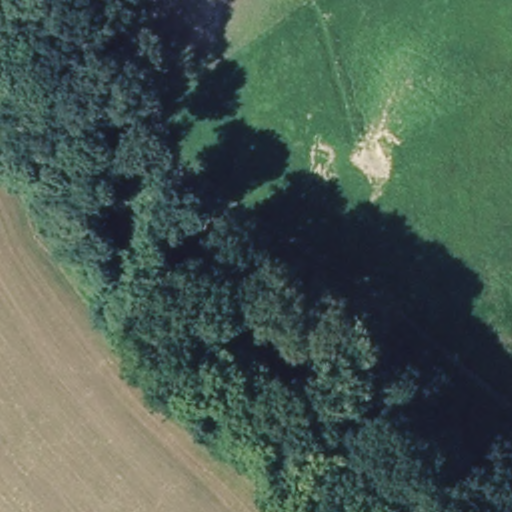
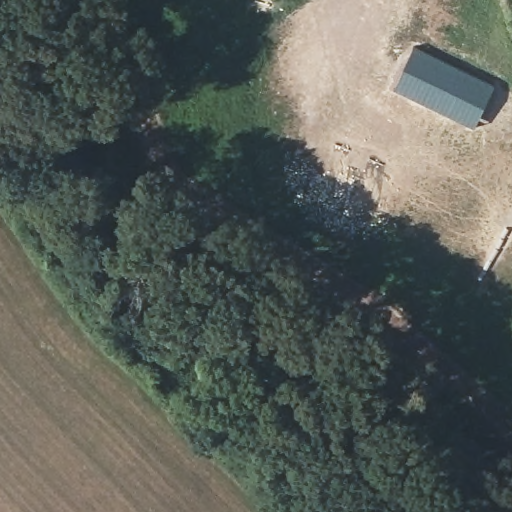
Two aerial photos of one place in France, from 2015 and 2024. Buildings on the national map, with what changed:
new [(414,46),(495,85),(474,128),(393,90),(414,46)]

